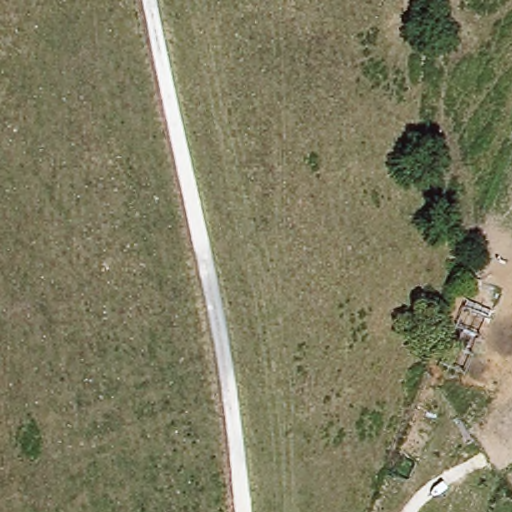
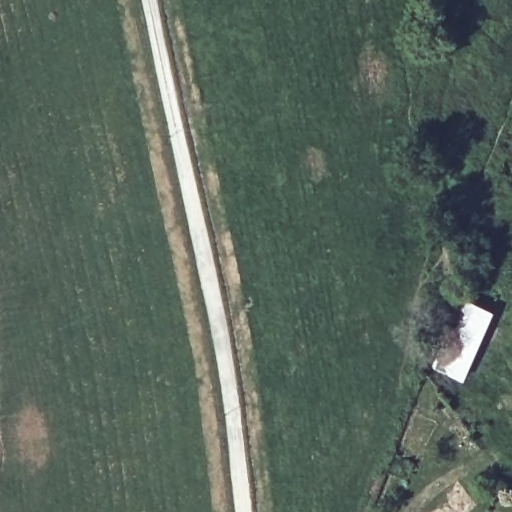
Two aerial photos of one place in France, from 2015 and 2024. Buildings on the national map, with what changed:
new [(447,337),(470,303),(495,314),(465,384),(433,369),(447,337)]

